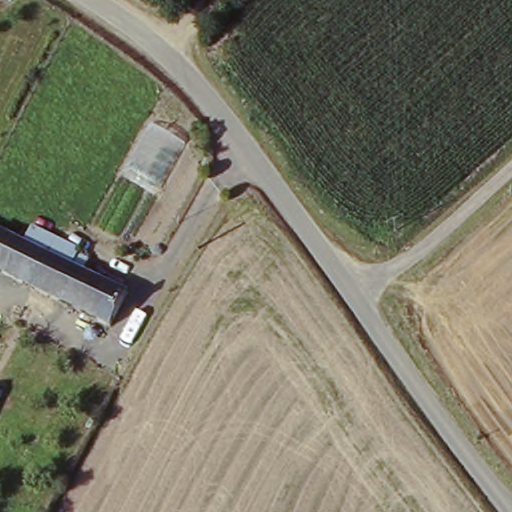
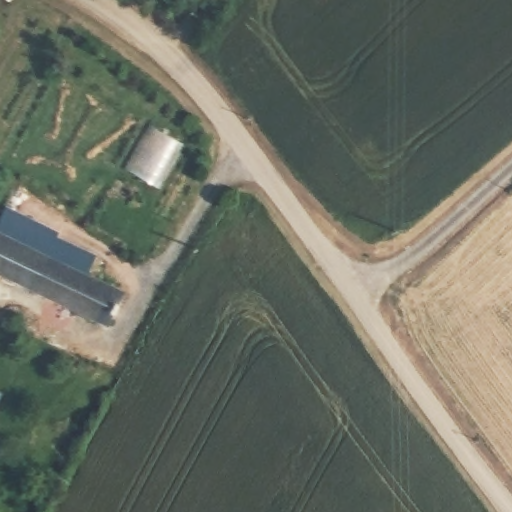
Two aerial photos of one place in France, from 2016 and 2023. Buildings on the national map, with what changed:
unchanged [(37,227),(84,249),(80,255),(92,260),(87,271),(132,292),(114,326),(7,273),(0,270),(0,230),(0,229),(29,244),(37,227)]
unchanged [(6,398),(0,413),(0,395),(6,398)]

